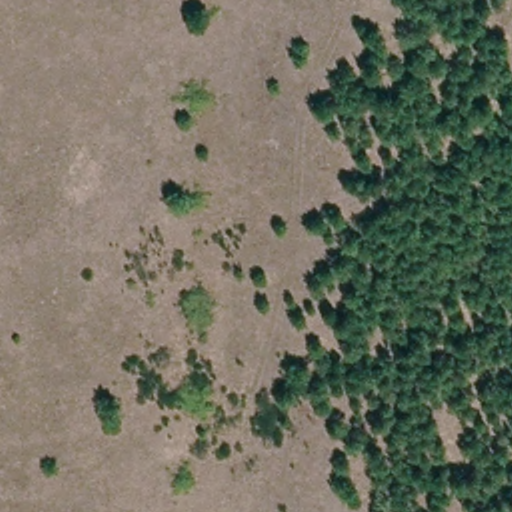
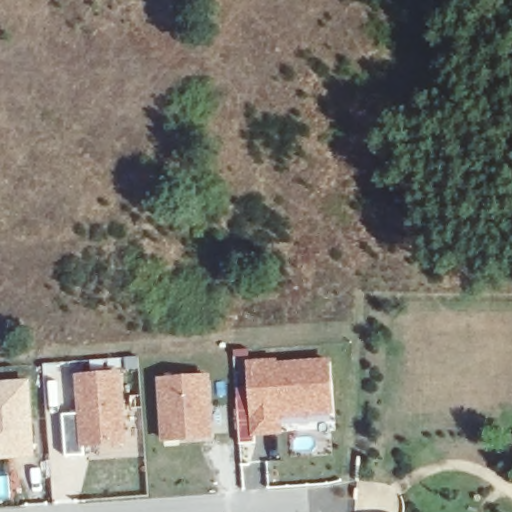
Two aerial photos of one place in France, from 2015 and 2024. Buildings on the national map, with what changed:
new [(274,363),(274,367),(327,362),(331,412),(276,416),(275,406),(254,408),(249,365),(274,363)]
new [(77,415),(74,375),(121,371),(125,443),(82,447),(82,455),(68,456),(64,415),(77,415)]
new [(209,374),(214,438),(163,442),(158,377),(209,374)]
new [(35,457),(0,460),(0,382),(29,380),(35,457)]

